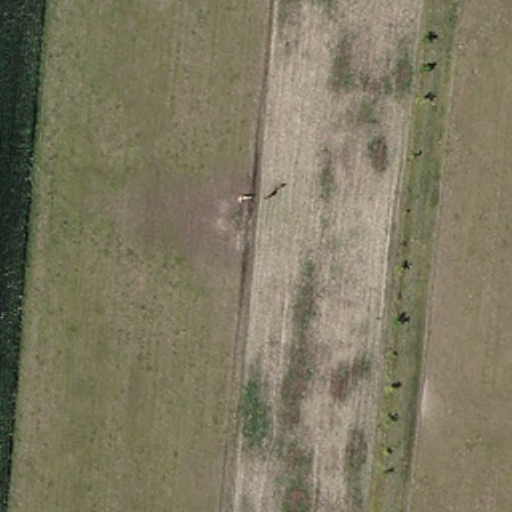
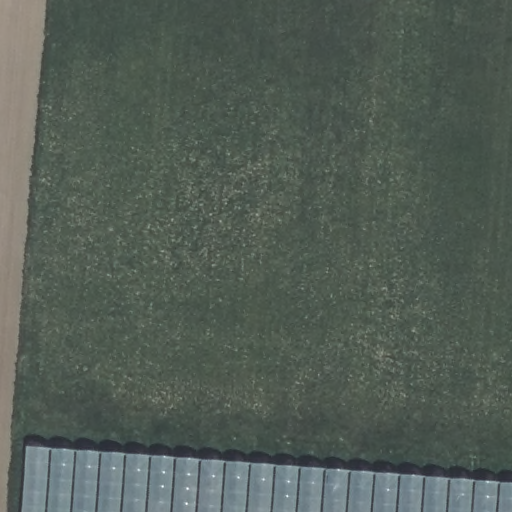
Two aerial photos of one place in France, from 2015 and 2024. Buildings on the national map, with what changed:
new [(27,447),(512,483),(512,512),(23,512),(27,447)]

